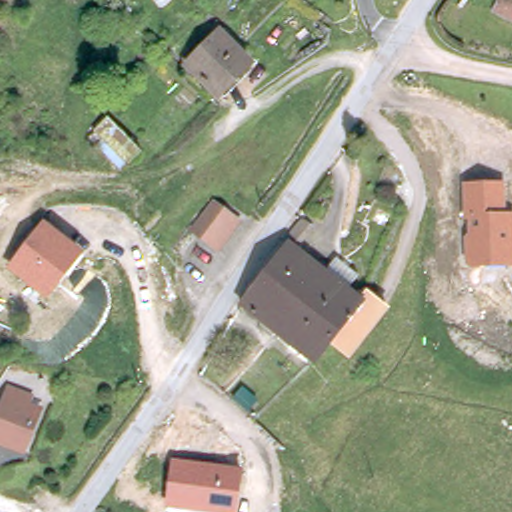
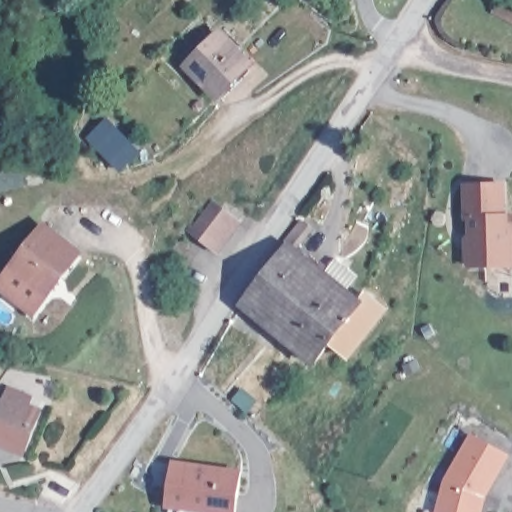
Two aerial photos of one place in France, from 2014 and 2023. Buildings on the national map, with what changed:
unchanged [(512,0),(512,20),(488,9),(493,0),(512,0)]
unchanged [(216,30),(246,60),(212,92),(182,61),(216,30)]
unchanged [(89,131),(103,116),(135,147),(121,161),(89,131)]
unchanged [(506,212),(512,212),(512,266),(469,268),(464,261),(463,237),(467,234),(466,219),(463,219),(462,182),(504,181),(506,212)]
unchanged [(190,225),(211,199),(240,218),(219,245),(190,225)]
unchanged [(85,253),(47,300),(6,268),(43,220),(85,253)]
unchanged [(361,303),(330,342),(312,364),(240,305),(286,244),(285,242),(300,222),(310,230),(295,250),(326,276),(336,261),(359,280),(349,293),(361,303)]
unchanged [(367,296),(388,313),(355,358),(330,342),(361,303),(367,296)]
unchanged [(24,407),(40,413),(24,451),(0,441),(0,424),(13,390),(28,397),(24,407)]
new [(442,481),(468,432),(510,455),(485,497),(482,512),(435,512),(442,481)]
unchanged [(241,468),(237,512),(201,512),(166,507),(171,459),(241,468)]

